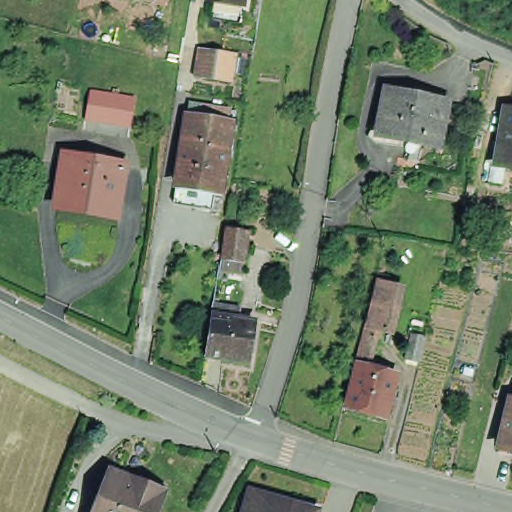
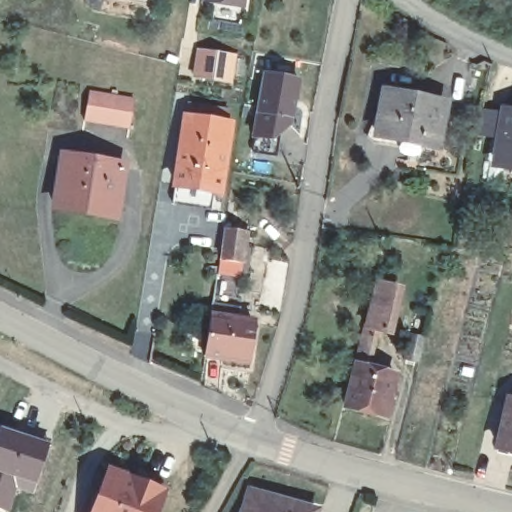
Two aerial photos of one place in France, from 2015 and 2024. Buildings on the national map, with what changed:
unchanged [(203,0),(238,0),(237,6),(203,0)]
unchanged [(224,81),(198,77),(189,76),(193,50),(203,51),(228,56),(224,81)]
new [(290,128),(270,145),(251,141),(262,75),(300,80),(290,128)]
unchanged [(122,91),(120,119),(87,118),(91,91),(122,91)]
unchanged [(380,91),(406,96),(402,115),(397,139),(371,134),(380,91)]
unchanged [(439,103),(430,146),(397,139),(402,115),(406,96),(439,103)]
unchanged [(220,199),(175,193),(185,128),(187,111),(202,114),(203,114),(203,116),(227,120),(225,133),(230,134),(220,199)]
unchanged [(510,115),(512,115),(512,170),(502,168),(510,115)]
unchanged [(67,156),(127,165),(119,215),(60,205),(67,156)]
unchanged [(220,228),(241,231),(237,261),(216,258),(220,228)]
unchanged [(377,419),(340,410),(350,367),(348,366),(358,329),(358,330),(370,284),(390,289),(378,334),(364,331),(362,338),(369,340),(362,370),(388,377),(377,419)]
unchanged [(203,360),(210,318),(212,308),(236,312),(235,322),(252,325),(246,366),(203,360)]
unchanged [(422,335),(417,359),(402,356),(407,331),(422,335)]
unchanged [(505,403),(507,403),(510,389),(512,389),(512,455),(493,450),(505,403)]
new [(49,443),(32,495),(17,491),(9,512),(6,512),(0,510),(0,427),(49,443)]
unchanged [(162,490),(153,512),(91,512),(106,475),(109,468),(129,476),(135,479),(162,490)]
unchanged [(251,504),(254,494),(319,512),(249,512),(251,504)]

